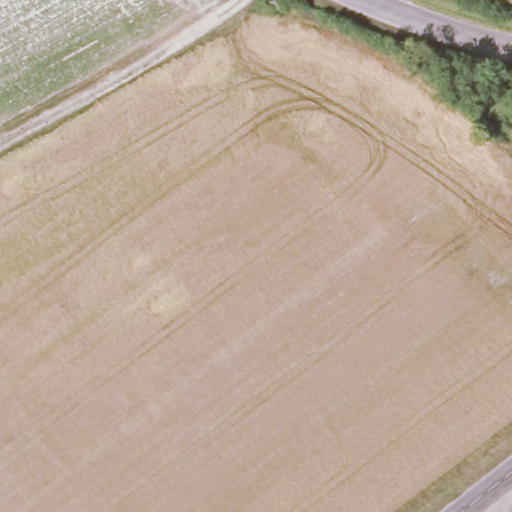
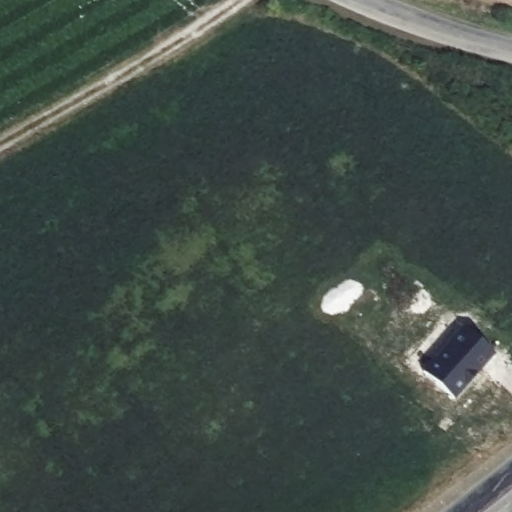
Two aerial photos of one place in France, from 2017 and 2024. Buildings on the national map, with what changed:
new [(422,371),(463,326),(494,353),(454,400),(422,371)]

